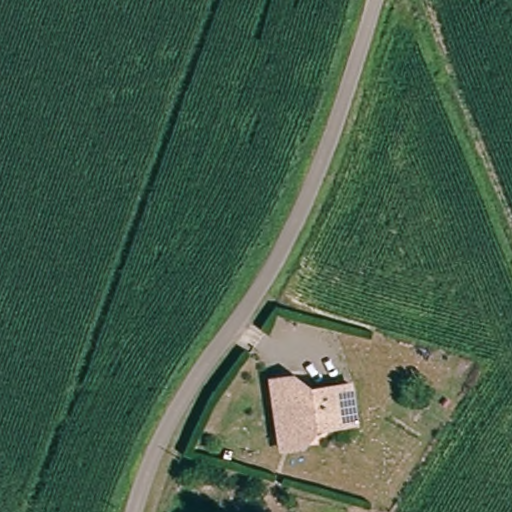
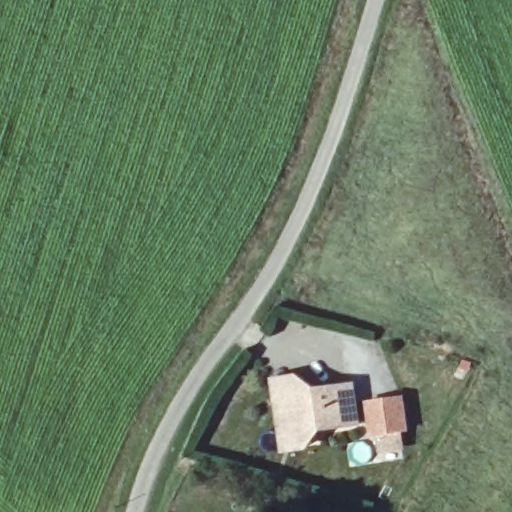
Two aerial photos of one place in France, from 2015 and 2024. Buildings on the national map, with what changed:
unchanged [(279,461),(277,441),(273,405),(272,389),(295,386),(310,402),(348,398),(352,435),(318,438),(299,460),(279,461)]
new [(407,431),(371,436),(364,401),(403,397),(407,431)]

